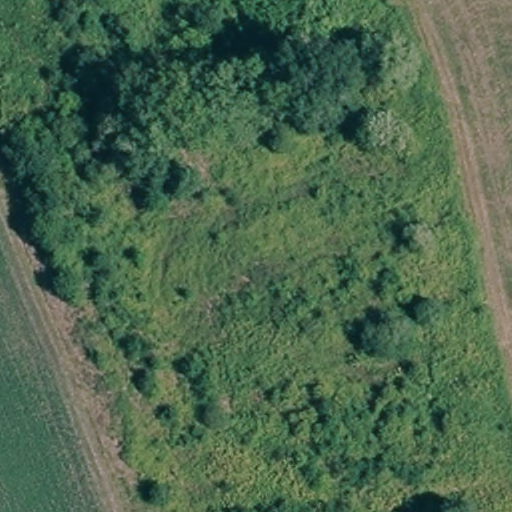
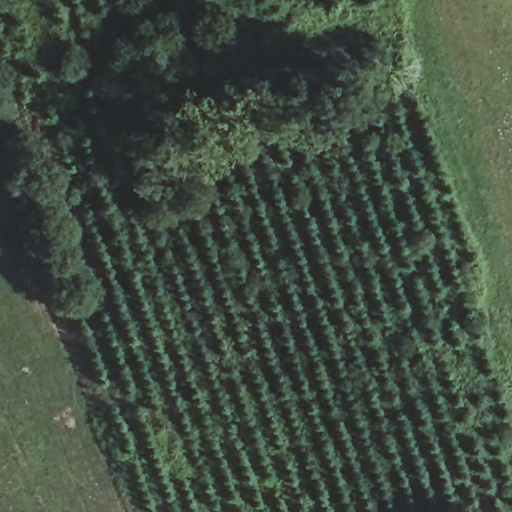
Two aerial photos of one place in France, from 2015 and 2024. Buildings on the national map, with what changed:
[]

